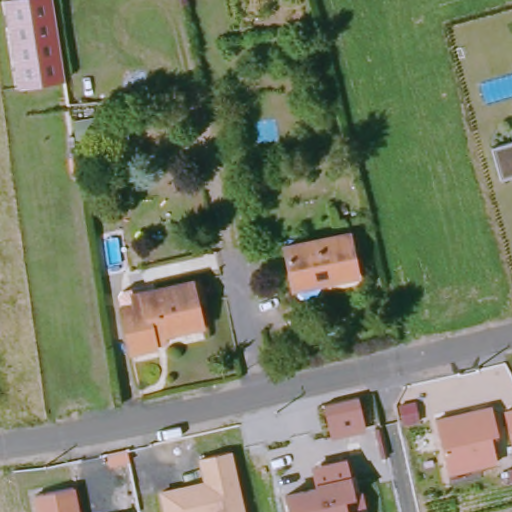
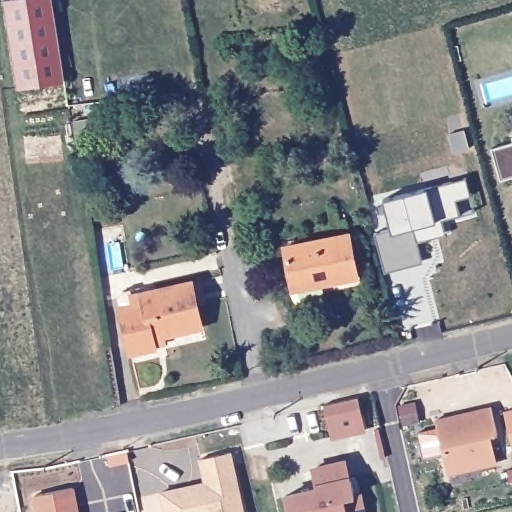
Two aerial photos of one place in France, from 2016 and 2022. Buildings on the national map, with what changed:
unchanged [(5,4),(32,0),(54,0),(67,83),(20,91),(5,4)]
unchanged [(71,116),(96,112),(98,128),(74,132),(71,116)]
new [(492,149),(512,143),(512,177),(501,180),(492,149)]
new [(441,219),(445,234),(416,240),(422,263),(385,273),(375,234),(391,233),(384,200),(427,189),(466,178),(474,211),(441,219)]
unchanged [(346,239),(353,284),(290,295),(280,253),(346,239)]
unchanged [(148,356),(126,360),(114,304),(116,298),(126,296),(127,302),(185,289),(193,287),(197,309),(190,310),(195,336),(149,346),(148,356)]
unchanged [(326,428),(318,396),(353,388),(361,419),(326,428)]
unchanged [(440,423),(497,413),(501,434),(493,436),(498,463),(450,472),(440,423)]
unchanged [(397,418),(413,415),(416,435),(401,438),(397,418)]
unchanged [(202,512),(200,512),(163,512),(156,484),(185,478),(191,482),(202,479),(195,451),(225,444),(240,512),(203,512),(202,512)]
unchanged [(359,509),(345,512),(326,512),(284,512),(277,488),(309,480),(308,477),(343,469),(348,487),(353,486),(359,509)]
unchanged [(32,496),(74,488),(79,512),(36,512),(32,496)]

